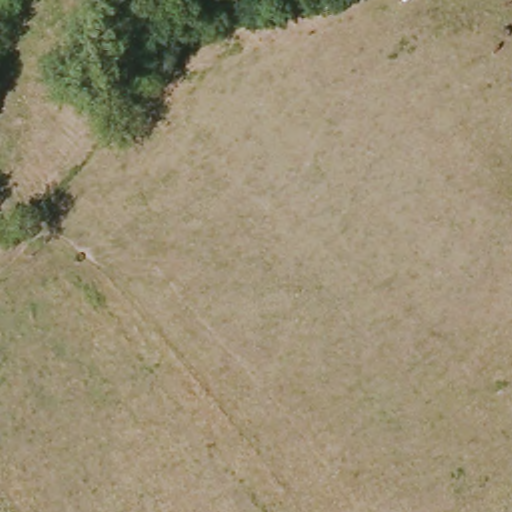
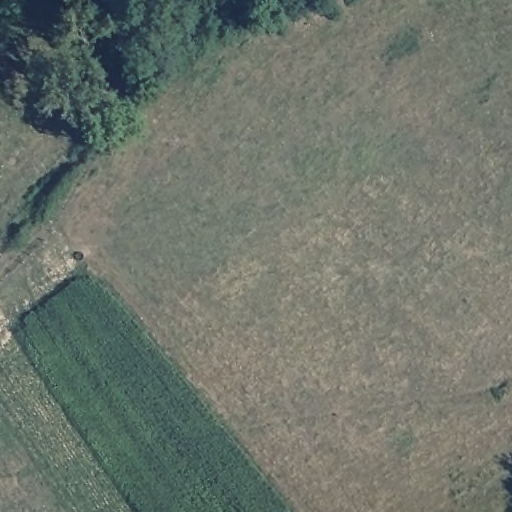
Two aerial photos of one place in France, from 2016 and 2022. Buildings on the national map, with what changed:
[]

